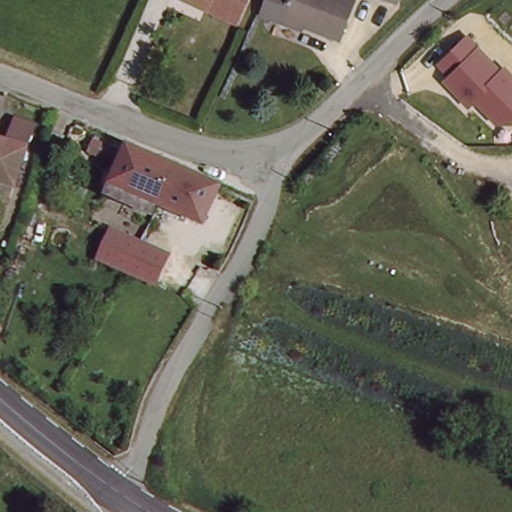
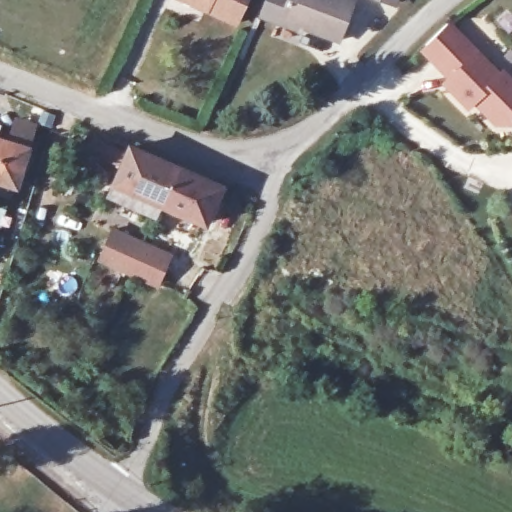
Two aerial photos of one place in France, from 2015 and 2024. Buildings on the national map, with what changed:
unchanged [(200,9),(183,0),(246,0),(233,27),(200,9)]
unchanged [(260,9),(264,0),(350,0),(335,37),(308,27),(304,35),(256,17),(260,9)]
unchanged [(377,0),(399,0),(396,7),(377,0)]
unchanged [(512,75),(512,127),(493,126),(474,107),(469,112),(442,82),(444,77),(436,67),(467,37),(500,72),(505,68),(512,75)]
unchanged [(4,122),(1,135),(12,139),(21,115),(37,121),(28,144),(30,145),(18,179),(0,173),(0,121),(4,122)]
unchanged [(113,191),(121,172),(92,159),(97,149),(126,162),(131,153),(177,174),(158,212),(113,191)]
unchanged [(177,174),(221,195),(203,232),(158,212),(177,174)]
unchanged [(167,259),(157,282),(129,268),(102,256),(112,236),(116,228),(143,241),(170,254),(167,259)]

